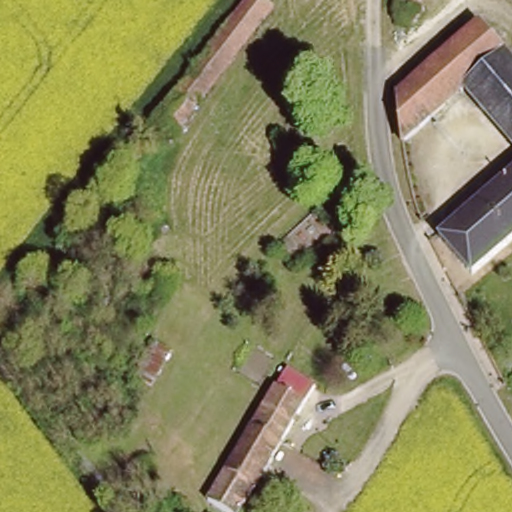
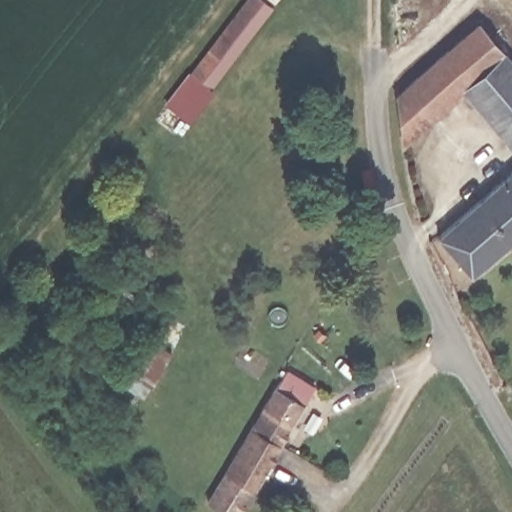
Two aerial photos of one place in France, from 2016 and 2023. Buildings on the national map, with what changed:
unchanged [(177,136),(157,121),(251,0),(260,0),(274,10),(177,136)]
unchanged [(512,61),(512,147),(467,95),(403,150),(398,96),(480,24),(512,61)]
unchanged [(439,238),(512,175),(512,244),(473,278),(439,238)]
unchanged [(395,290),(382,295),(376,281),(388,275),(395,290)]
unchanged [(165,356),(145,388),(130,378),(150,346),(165,356)]
unchanged [(232,512),(210,497),(280,386),(310,405),(242,512),(232,512)]

